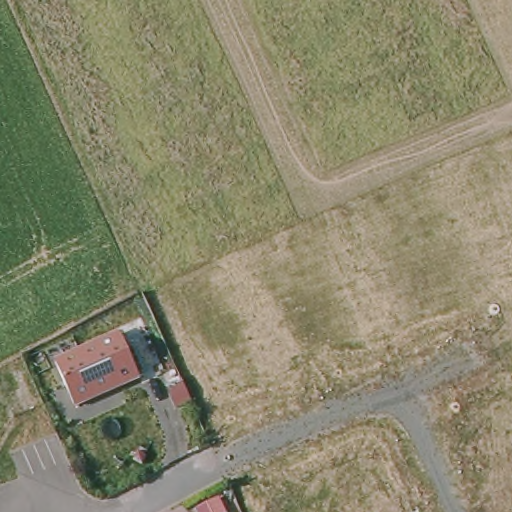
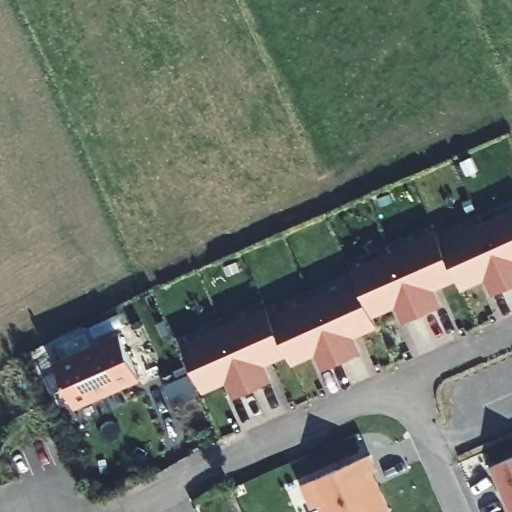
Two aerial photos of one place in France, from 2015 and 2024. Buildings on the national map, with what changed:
new [(273,319),(357,281),(353,271),(438,234),(442,244),(512,212),(512,286),(495,294),(486,276),(461,287),(457,277),(432,288),(440,307),(423,315),(405,322),(397,303),(372,315),(377,325),(352,336),(360,354),(342,361),(325,370),(317,351),(292,362),(287,353),(262,364),(271,382),(236,397),(228,380),(203,390),(183,346),(268,309),(273,319)]
unchanged [(121,336),(140,380),(75,409),(55,365),(121,336)]
new [(314,508),(303,485),(370,455),(377,470),(372,473),(375,482),(377,482),(390,512),(323,512),(320,505),(314,508)]
new [(509,495),(506,490),(503,491),(493,466),(512,458),(512,511),(507,499),(509,495)]

